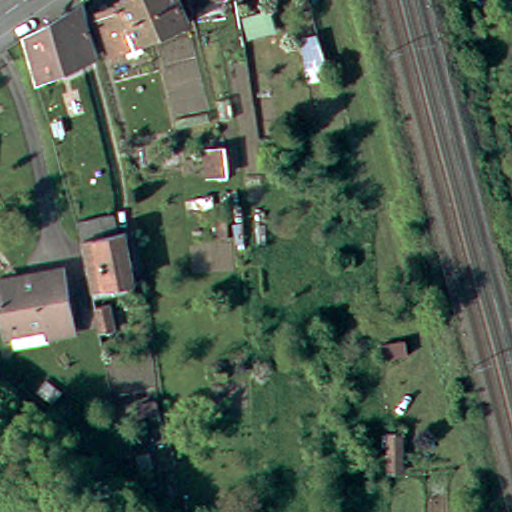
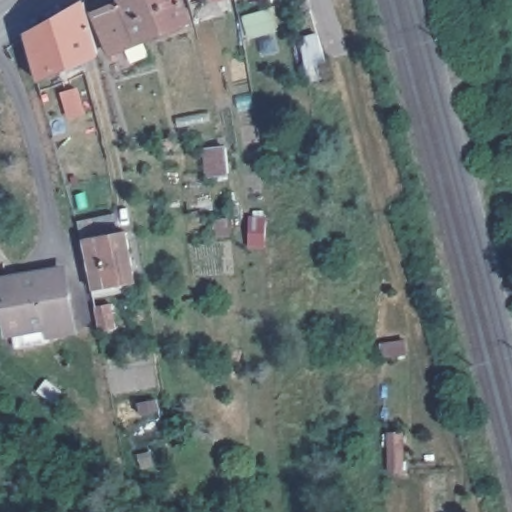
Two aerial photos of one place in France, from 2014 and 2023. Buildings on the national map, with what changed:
unchanged [(121,57),(101,66),(82,15),(110,5),(110,1),(112,0),(171,0),(180,23),(118,50),(121,57)]
unchanged [(178,0),(190,0),(195,11),(182,17),(178,0)]
unchanged [(89,57),(27,84),(15,37),(75,4),(89,57)]
unchanged [(135,282),(92,292),(82,241),(76,222),(116,216),(118,235),(126,234),(135,282)]
unchanged [(47,341),(12,346),(10,332),(5,333),(0,304),(0,277),(64,265),(75,330),(46,335),(47,341)]
unchanged [(95,304),(113,301),(120,343),(103,346),(100,326),(95,304)]

